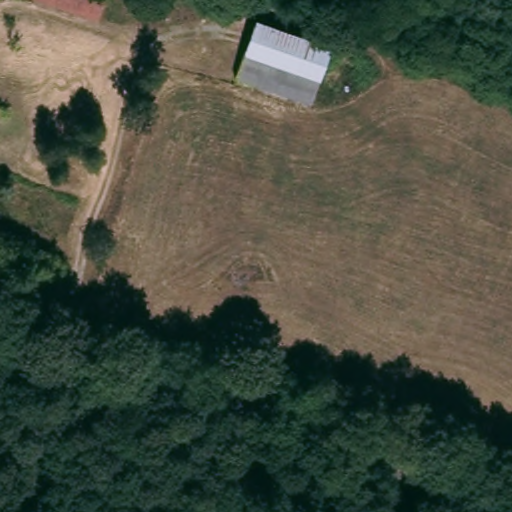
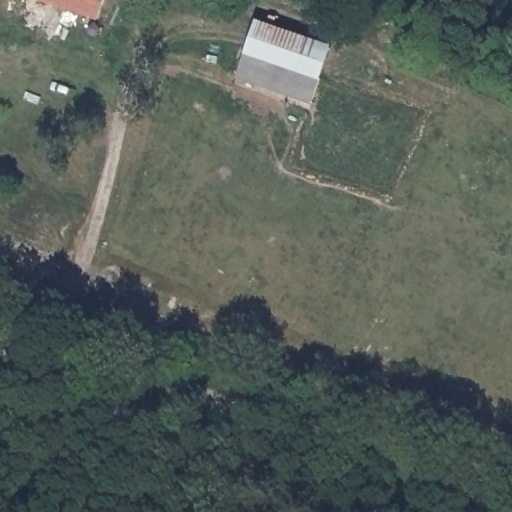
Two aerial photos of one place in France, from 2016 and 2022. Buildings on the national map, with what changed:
unchanged [(59,0),(74,0),(72,4),(59,0)]
unchanged [(249,43),(259,14),(332,39),(322,70),(249,43)]
unchanged [(322,70),(314,95),(240,67),(249,43),(322,70)]

